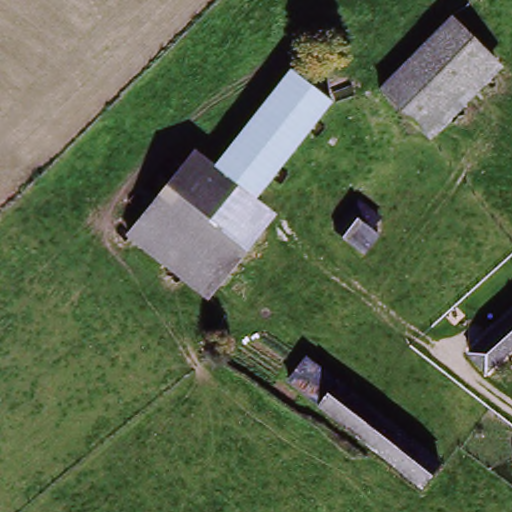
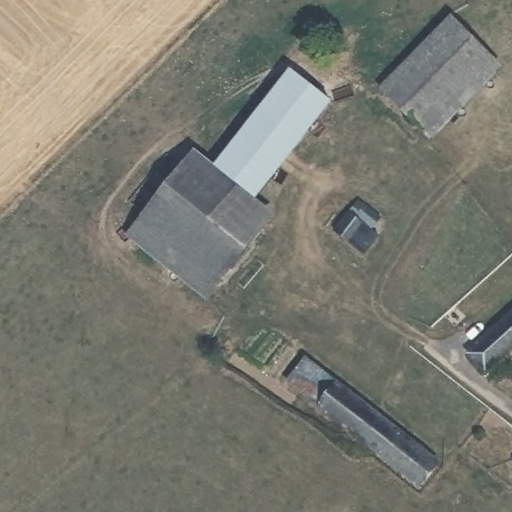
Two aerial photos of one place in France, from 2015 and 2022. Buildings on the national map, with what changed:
unchanged [(459,20),(493,56),(436,115),(423,129),(409,115),(387,90),(396,80),(422,55),(459,20)]
unchanged [(257,199),(216,166),(254,120),(293,72),(333,105),(278,175),(257,199)]
unchanged [(273,213),(258,231),(182,169),(197,151),(216,166),(257,199),(273,213)]
unchanged [(182,169),(258,231),(216,285),(139,220),(182,169)]
unchanged [(363,249),(356,242),(336,224),(352,210),(362,200),(379,217),(369,226),(378,235),(363,249)]
unchanged [(206,297),(127,234),(139,220),(216,285),(206,297)]
unchanged [(356,252),(363,258),(356,265),(349,258),(356,252)]
unchanged [(465,350),(512,310),(512,344),(482,370),(465,350)]
unchanged [(309,362),(340,386),(321,410),(290,385),(309,362)]
unchanged [(340,386),(442,469),(422,492),(321,410),(340,386)]

